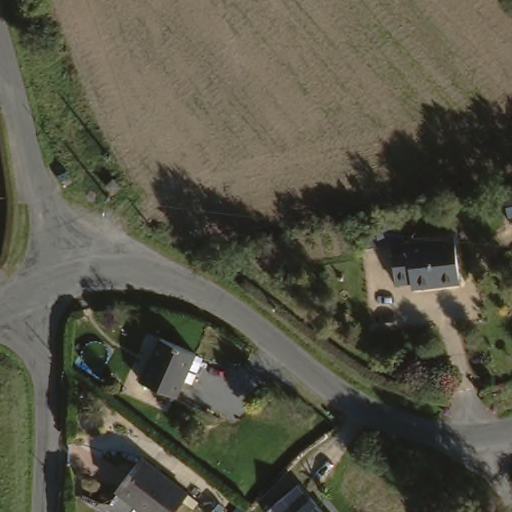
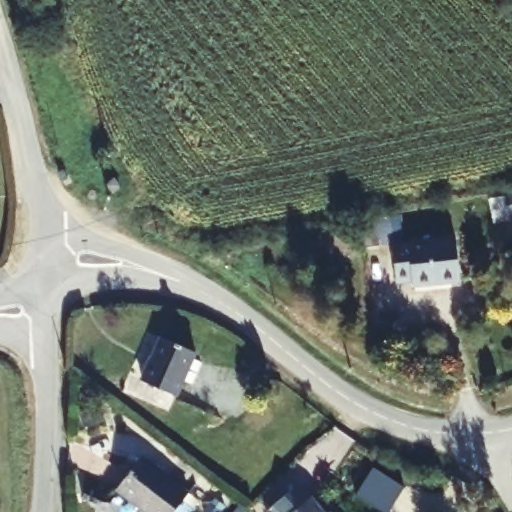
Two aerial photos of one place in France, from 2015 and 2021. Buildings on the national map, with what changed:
unchanged [(117,177),(124,187),(115,194),(108,185),(117,177)]
unchanged [(406,283),(389,285),(385,245),(452,238),(457,284),(433,286),(406,288),(406,283)]
unchanged [(196,351),(179,395),(143,381),(155,351),(160,337),(196,351)]
unchanged [(184,497),(172,512),(141,512),(114,492),(136,461),(184,497)]
new [(354,495),(372,467),(404,488),(388,512),(381,512),(354,495)]
unchanged [(324,512),(264,512),(262,510),(295,482),(324,512)]

